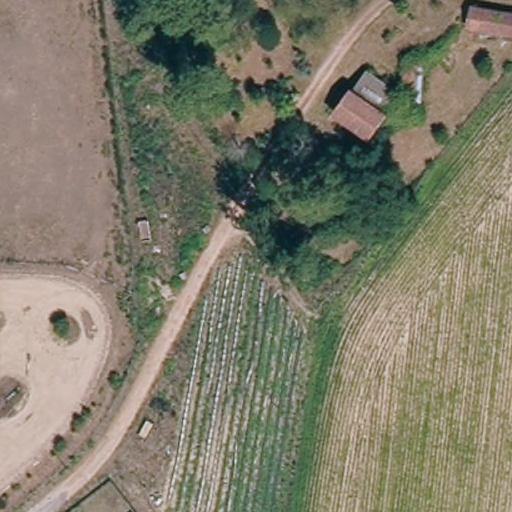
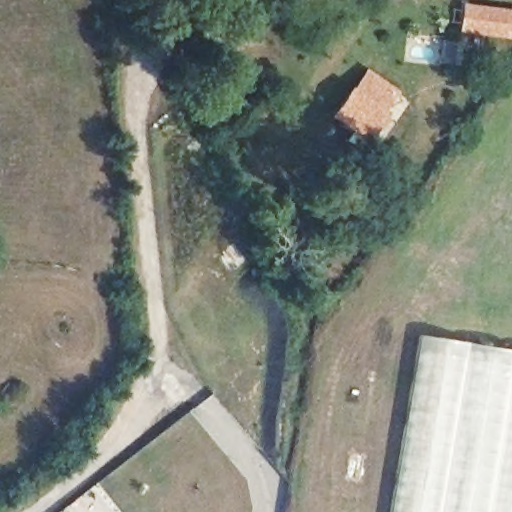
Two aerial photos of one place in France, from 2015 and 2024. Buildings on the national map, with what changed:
unchanged [(512,15),(512,33),(466,27),(468,9),(512,15)]
unchanged [(403,101),(371,150),(331,122),(367,74),(403,101)]
new [(390,512),(420,332),(512,349),(512,512),(390,512)]

